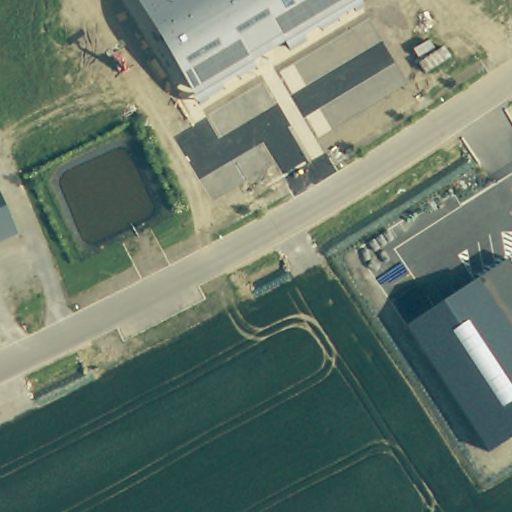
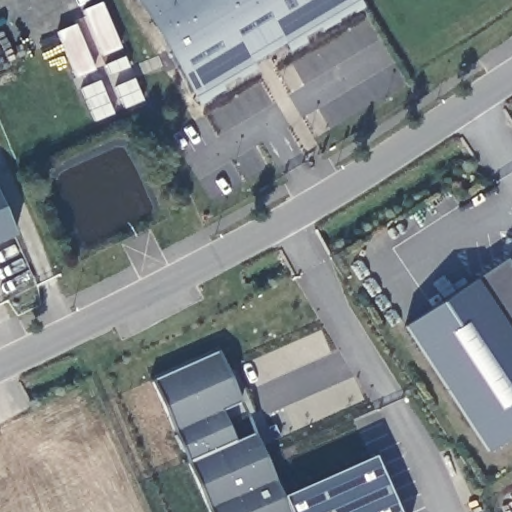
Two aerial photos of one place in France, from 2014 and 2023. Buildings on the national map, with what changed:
unchanged [(356,0),(194,96),(136,0),(356,0)]
unchanged [(507,259),(512,267),(512,436),(489,451),(407,326),(507,259)]
new [(154,379),(219,351),(240,402),(222,409),(237,441),(256,432),(283,496),(375,455),(399,512),(211,512),(188,462),(154,379)]

